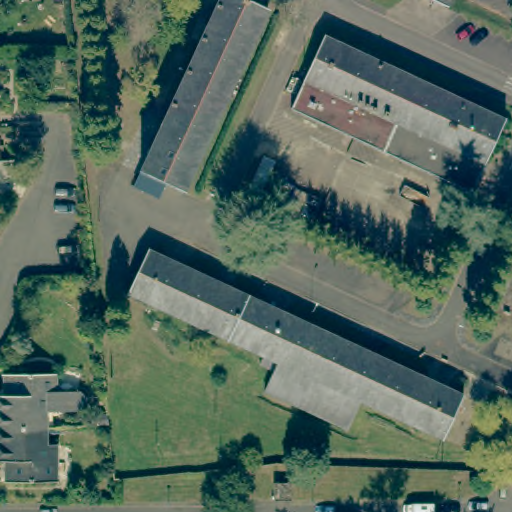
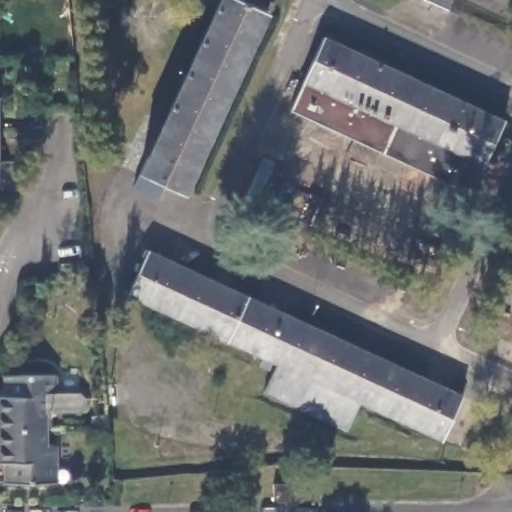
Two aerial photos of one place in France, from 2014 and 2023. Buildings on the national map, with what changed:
unchanged [(219,0),(242,0),(268,12),(185,194),(139,172),(219,0)]
unchanged [(447,0),(443,6),(430,0),(447,0)]
unchanged [(287,106),(300,77),(298,76),(319,32),(500,116),(465,189),(287,106)]
unchanged [(357,400),(343,431),(259,392),(274,361),(124,291),(144,248),(461,394),(440,438),(357,400)]
unchanged [(6,391),(5,372),(1,372),(1,370),(55,369),(55,388),(73,388),(78,393),(78,403),(73,408),(55,408),(46,408),(46,424),(38,424),(0,424),(0,392),(6,391)]
unchanged [(38,424),(46,424),(46,440),(55,440),(56,478),(3,477),(3,475),(6,475),(6,456),(0,456),(0,424),(38,424)]
unchanged [(275,485),(292,485),(291,501),(275,501),(275,485)]

